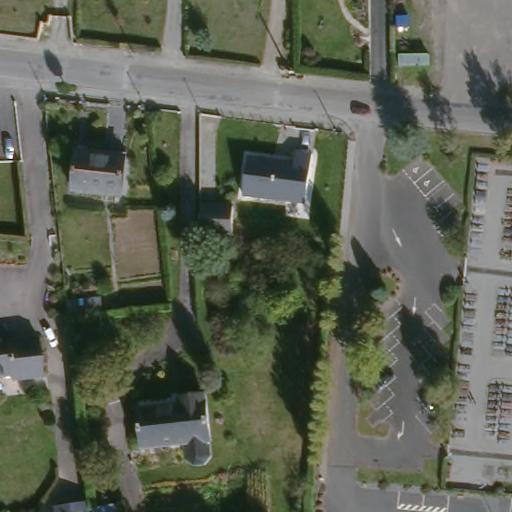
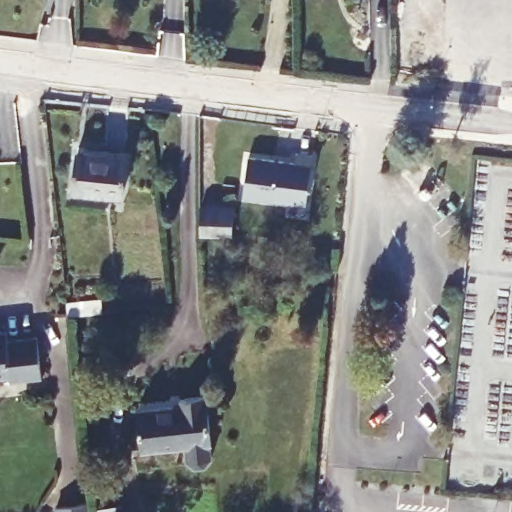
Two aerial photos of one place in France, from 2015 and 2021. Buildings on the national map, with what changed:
unchanged [(252,158),(295,161),(297,154),(315,155),(307,199),(248,189),(252,158)]
unchanged [(82,160),(92,161),(94,155),(129,159),(126,200),(80,195),(82,160)]
unchanged [(232,211),(230,235),(194,234),(196,209),(232,211)]
unchanged [(107,300),(108,309),(109,319),(81,320),(79,306),(79,305),(79,302),(107,300)]
unchanged [(35,339),(38,378),(11,382),(10,377),(0,377),(0,342),(35,339)]
unchanged [(202,473),(192,473),(187,463),(186,448),(146,450),(144,408),(174,408),(174,397),(203,396),(206,447),(207,462),(202,473)]
unchanged [(122,507),(122,512),(91,512),(91,510),(122,507)]
unchanged [(91,510),(91,512),(74,512),(91,510)]

